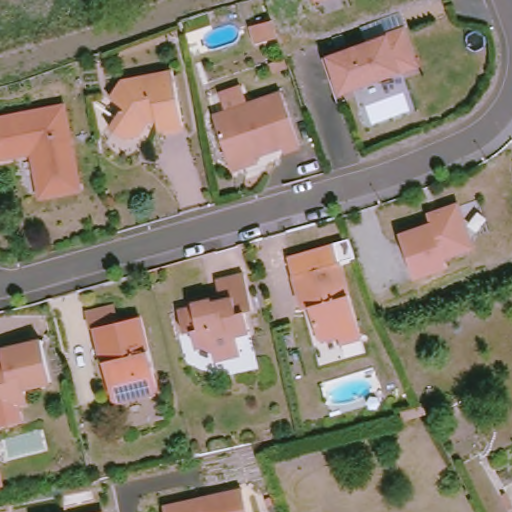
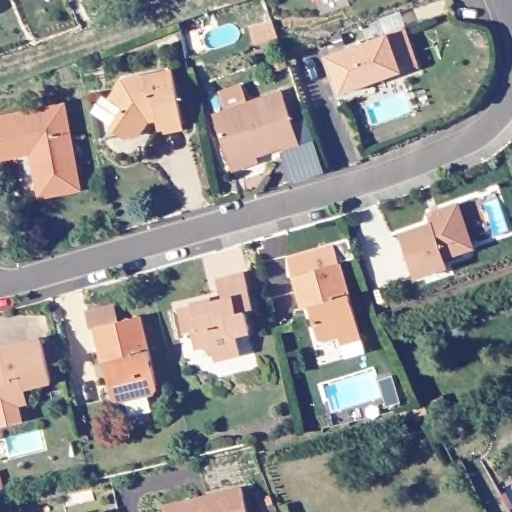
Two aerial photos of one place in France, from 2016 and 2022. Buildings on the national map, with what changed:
unchanged [(275,15),(280,32),(260,39),(255,21),(275,15)]
unchanged [(407,28),(419,66),(403,71),(341,92),(328,54),(390,34),(407,28)]
unchanged [(178,128),(155,132),(153,123),(145,124),(137,136),(122,139),(107,130),(120,110),(107,100),(118,81),(167,71),(178,128)]
unchanged [(229,166),(227,162),(209,113),(277,89),(297,142),(280,149),(278,144),(254,153),(255,158),(229,166)]
unchanged [(38,197),(30,160),(35,154),(25,149),(22,154),(0,159),(0,119),(10,118),(12,115),(20,113),(22,115),(60,109),(75,189),(38,197)]
unchanged [(473,242),(467,252),(446,259),(449,268),(417,278),(402,235),(434,224),(432,218),(442,215),(443,211),(462,205),(473,242)]
unchanged [(338,343),(335,336),(324,339),(315,339),(310,319),(315,313),(312,305),(300,308),(290,276),(335,262),(358,337),(338,343)]
unchanged [(214,280),(242,274),(250,309),(242,312),(247,330),(232,334),(237,354),(213,361),(210,349),(202,344),(193,346),(190,330),(180,332),(175,310),(190,307),(190,303),(208,298),(210,303),(218,300),(214,280)]
unchanged [(152,384),(147,392),(113,401),(107,396),(103,381),(105,374),(111,373),(107,360),(98,362),(90,328),(85,329),(79,309),(105,303),(110,323),(133,317),(152,384)]
unchanged [(20,391),(12,403),(0,406),(0,348),(33,339),(45,381),(18,387),(20,391)]
unchanged [(405,420),(402,408),(422,403),(428,414),(405,420)]
unchanged [(242,489),(248,512),(165,512),(164,506),(242,489)]

